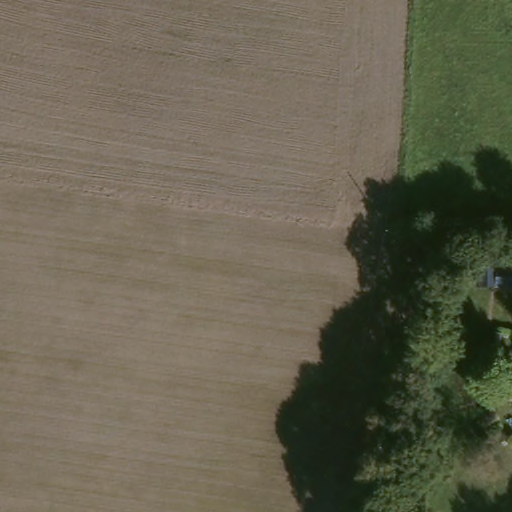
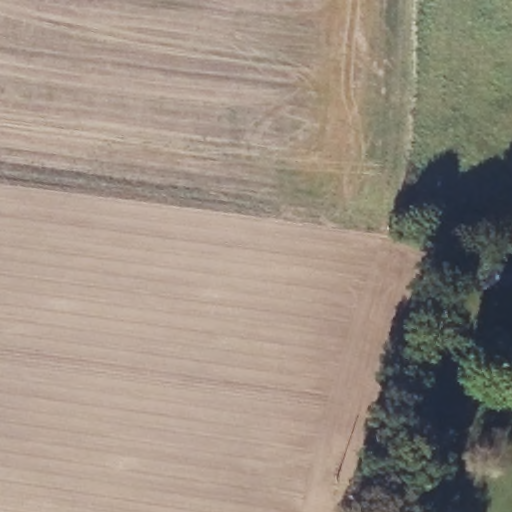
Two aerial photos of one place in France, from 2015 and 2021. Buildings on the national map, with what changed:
unchanged [(512,282),(496,281),(496,263),(512,264),(512,282)]

